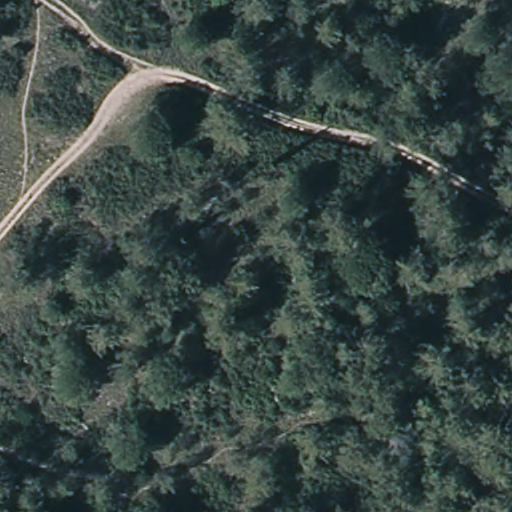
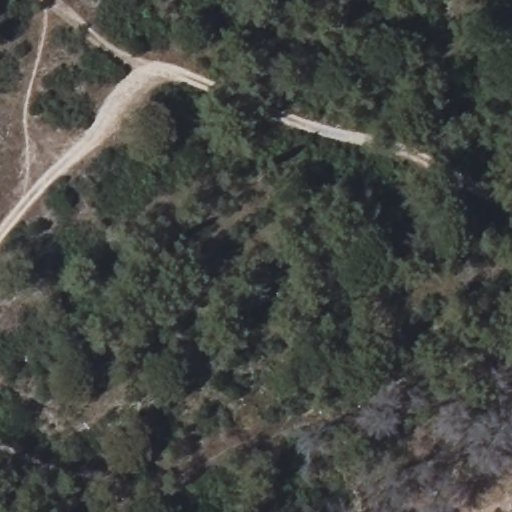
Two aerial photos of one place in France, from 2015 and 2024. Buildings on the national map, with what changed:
unchanged [(512,0),(512,4),(508,5),(507,0),(512,0)]

